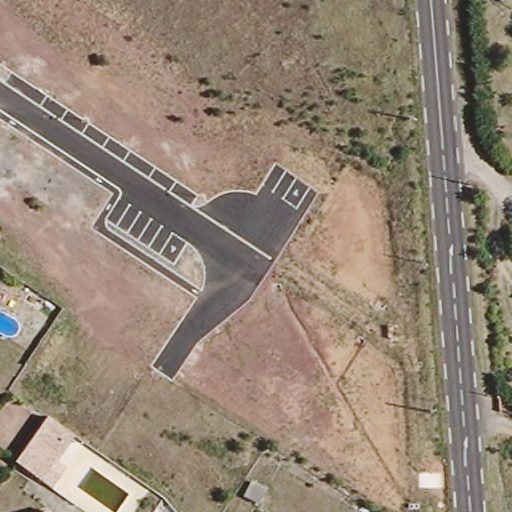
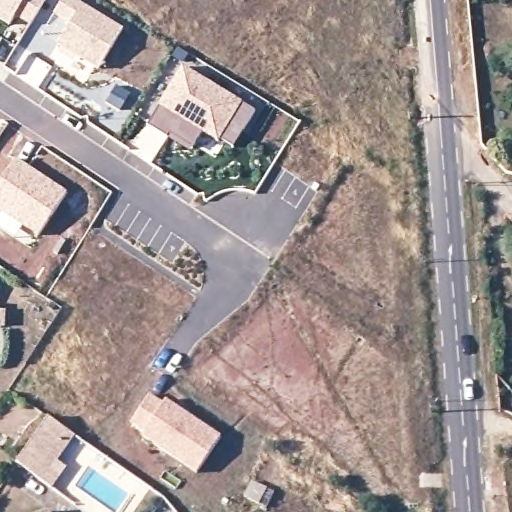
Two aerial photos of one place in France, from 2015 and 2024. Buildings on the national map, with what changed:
unchanged [(52,0),(36,28),(21,19),(15,28),(0,18),(0,0),(52,0)]
new [(100,68),(60,43),(43,33),(57,12),(64,0),(77,0),(124,29),(100,68)]
new [(244,103),(256,110),(232,147),(222,140),(220,143),(204,132),(191,152),(147,125),(159,106),(183,66),(244,103)]
new [(68,192),(37,237),(22,227),(15,237),(0,227),(0,182),(16,157),(68,192)]
new [(131,424),(151,394),(164,403),(167,398),(222,435),(197,473),(142,436),(144,433),(131,424)]
unchanged [(45,484),(39,480),(14,462),(49,412),(74,430),(80,435),(45,484)]
unchanged [(49,512),(42,512),(48,510),(49,512)]

